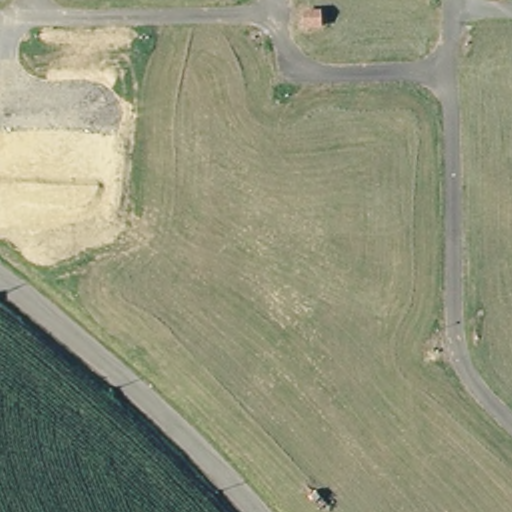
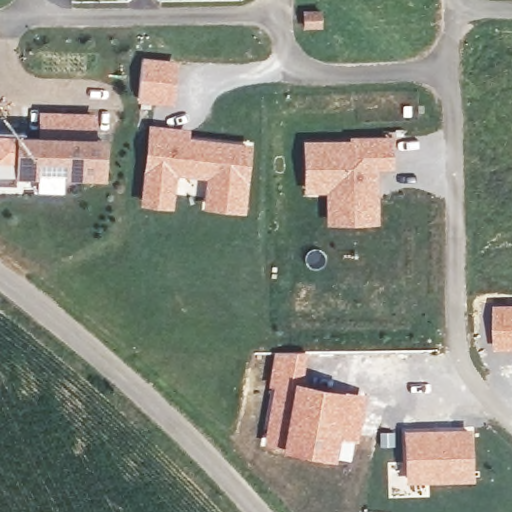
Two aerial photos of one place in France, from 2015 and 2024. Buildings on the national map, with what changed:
unchanged [(318,11),(320,30),(302,31),(300,13),(318,11)]
new [(178,60),(173,107),(137,103),(141,56),(178,60)]
new [(190,128),(189,137),(251,144),(244,213),(202,210),(206,179),(176,175),(173,209),(138,205),(148,123),(190,128)]
new [(14,138),(14,134),(105,137),(103,180),(64,179),(63,193),(37,192),(37,179),(13,179),(14,172),(0,172),(0,138),(14,138)]
new [(348,141),(348,136),(393,136),(394,170),(377,170),(379,223),(327,225),(325,193),(304,193),(302,140),(348,141)]
new [(512,349),(493,349),(492,304),(512,304),(512,349)]
new [(270,388),(267,388),(272,351),(306,352),(303,381),(367,395),(358,441),(351,462),(260,444),(270,388)]
new [(473,428),(473,480),(404,482),(402,430),(473,428)]

